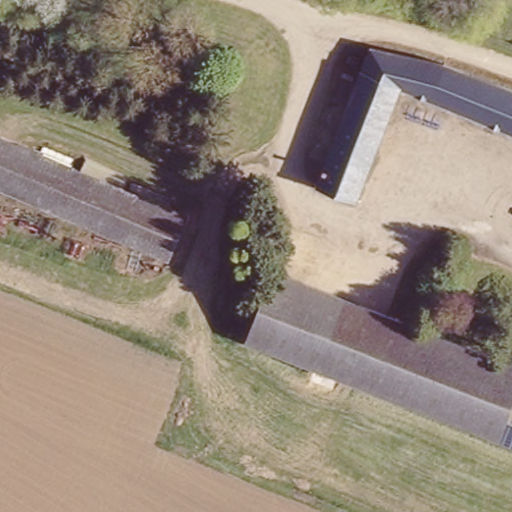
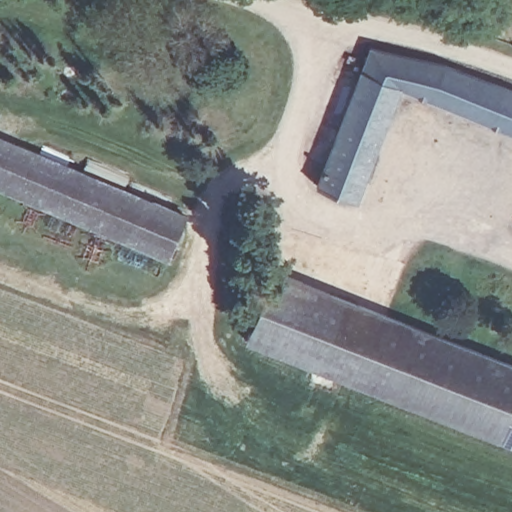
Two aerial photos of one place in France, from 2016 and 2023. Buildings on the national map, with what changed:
unchanged [(357,45),(436,63),(512,92),(512,135),(408,92),(361,208),(302,184),(357,45)]
unchanged [(166,255),(0,185),(0,134),(184,214),(166,255)]
unchanged [(508,383),(512,385),(512,445),(234,339),(264,265),(512,361),(512,371),(508,383)]

